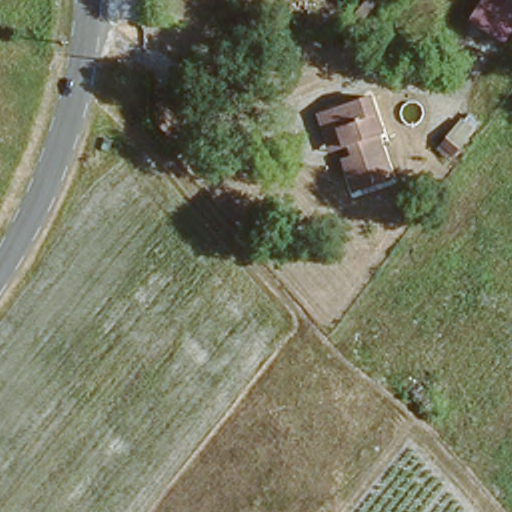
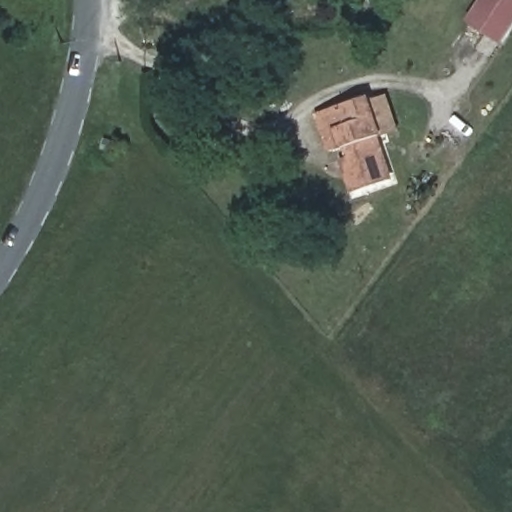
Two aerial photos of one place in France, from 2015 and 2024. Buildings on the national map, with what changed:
unchanged [(503,44),(471,19),(486,0),(512,0),(512,32),(503,44)]
unchanged [(376,130),(373,132),(387,176),(351,189),(338,153),(344,151),(341,143),(328,147),(314,106),(328,101),(363,90),(376,130)]

